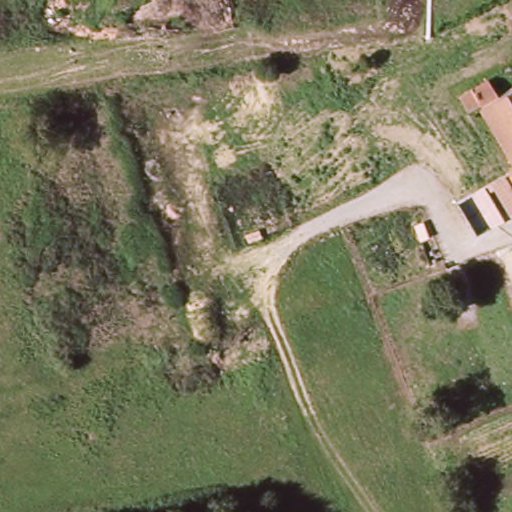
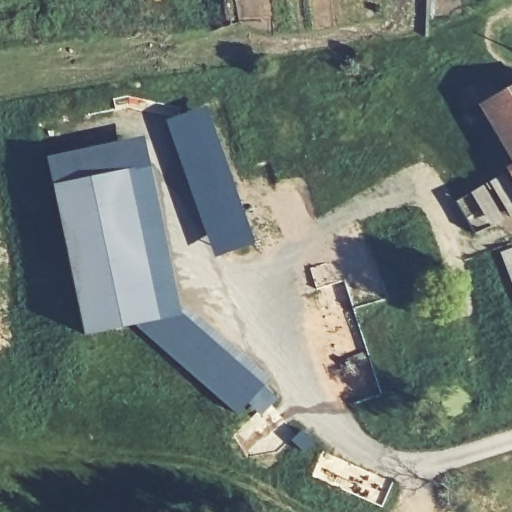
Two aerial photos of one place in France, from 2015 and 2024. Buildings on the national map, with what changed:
demolished [(498,38),(489,18),(501,11),(512,31),(498,38)]
unchanged [(488,103),(474,109),(468,102),(469,88),(479,81),(495,73),(506,88),(512,86),(512,147),(488,103)]
new [(206,104),(255,241),(214,257),(194,203),(164,119),(206,104)]
new [(52,184),(46,156),(127,139),(133,169),(128,170),(158,318),(162,317),(172,305),(264,385),(238,414),(137,325),(84,336),(52,184)]
unchanged [(504,173),(512,187),(512,220),(508,215),(491,225),(472,192),(504,173)]
unchanged [(512,255),(512,286),(497,253),(509,248),(512,255)]

